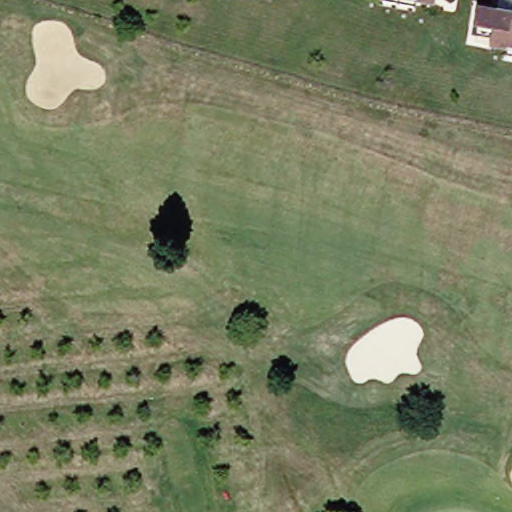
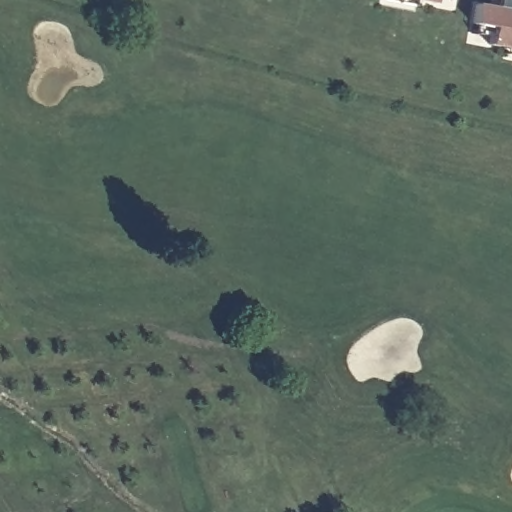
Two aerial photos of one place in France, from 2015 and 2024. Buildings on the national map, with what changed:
unchanged [(375,1),(376,0),(430,0),(429,5),(415,2),(412,7),(375,1)]
unchanged [(501,60),(501,54),(485,51),(488,33),(468,27),(473,9),(510,19),(512,11),(512,62),(501,60)]

